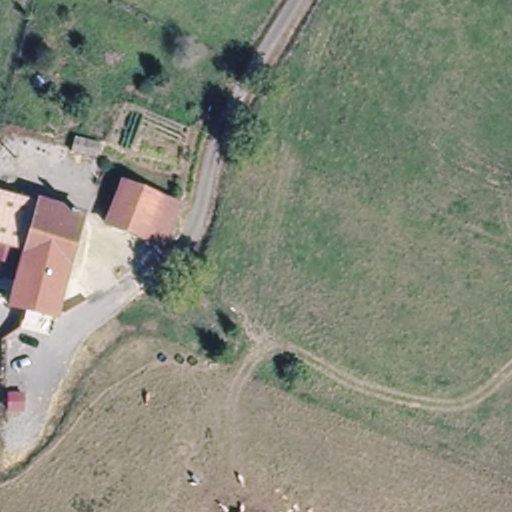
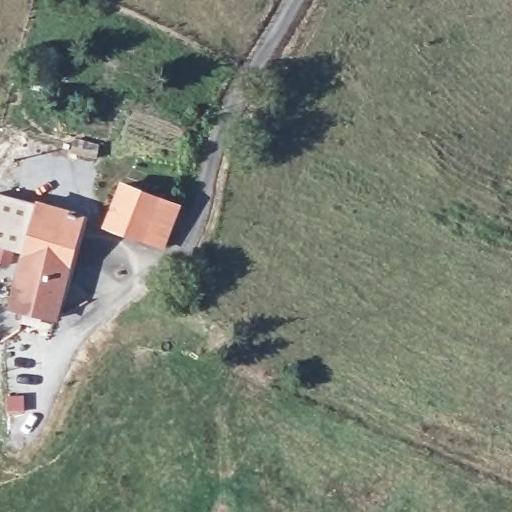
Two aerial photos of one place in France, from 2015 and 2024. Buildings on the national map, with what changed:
unchanged [(126,187),(155,198),(141,241),(109,230),(126,187)]
unchanged [(60,317),(16,302),(29,253),(12,247),(26,195),(88,213),(60,317)]
unchanged [(163,250),(141,241),(155,198),(180,203),(176,216),(163,250)]

